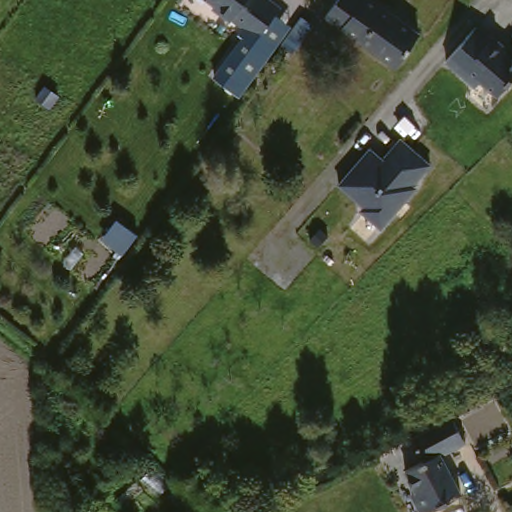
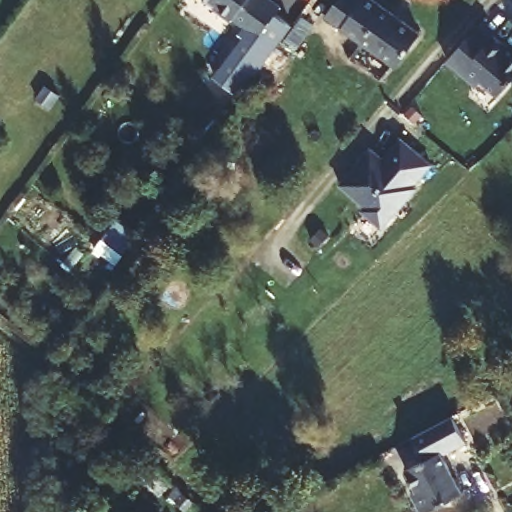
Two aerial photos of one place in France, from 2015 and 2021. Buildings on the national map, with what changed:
unchanged [(260,38),(235,19),(232,21),(215,7),(217,4),(212,0),(272,0),(282,8),(260,38)]
unchanged [(357,0),(362,0),(415,37),(391,70),(320,20),(335,0),(357,0)]
unchanged [(300,14),(306,19),(307,19),(311,23),(290,50),(286,47),(285,46),(279,41),(300,14)]
unchanged [(477,86),(449,61),(478,27),(492,39),(495,36),(508,48),(505,51),(512,57),(512,81),(499,95),(482,80),(477,86)]
unchanged [(383,227),(363,210),(366,206),(341,184),(372,149),(388,163),(406,143),(432,165),(414,186),(417,188),(383,227)]
unchanged [(425,512),(415,512),(407,494),(411,492),(401,471),(420,462),(409,439),(450,419),(463,445),(438,458),(457,497),(425,512)]

